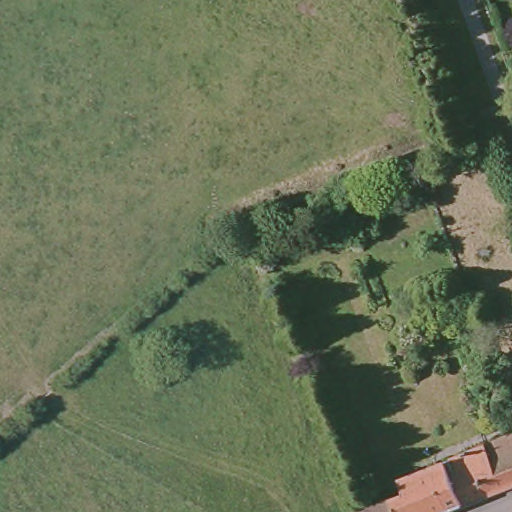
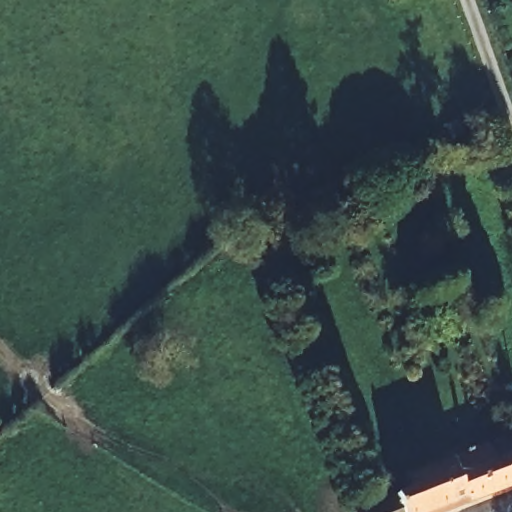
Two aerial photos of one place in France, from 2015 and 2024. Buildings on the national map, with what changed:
unchanged [(397,492),(393,480),(510,432),(512,432),(512,485),(443,512),(353,512),(352,510),(392,494),(397,492)]

